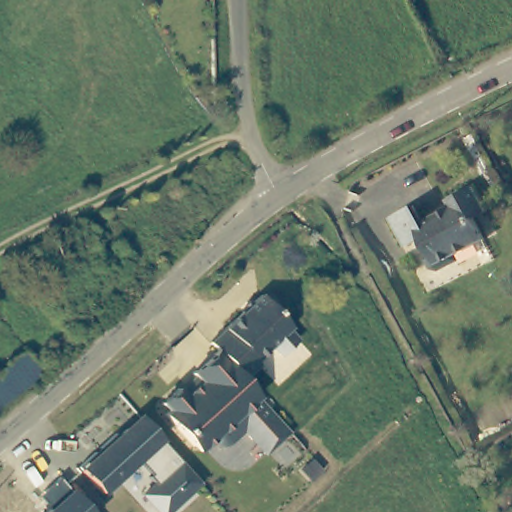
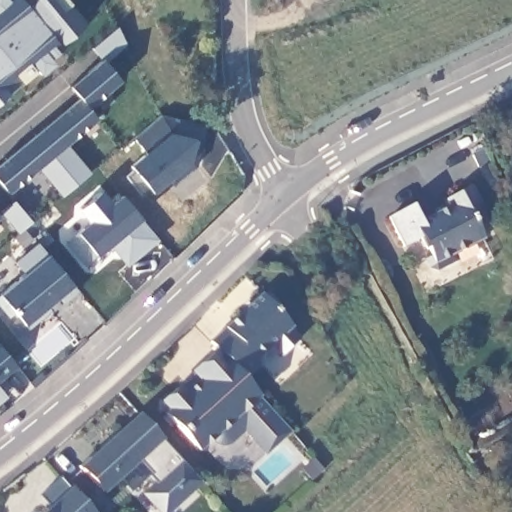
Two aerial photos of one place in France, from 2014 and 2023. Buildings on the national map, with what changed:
new [(20,81),(0,97),(0,0),(66,0),(84,22),(20,81)]
new [(0,183),(0,163),(79,97),(71,86),(100,59),(91,50),(117,26),(125,45),(105,62),(121,80),(88,108),(97,120),(67,144),(91,172),(61,197),(39,167),(7,193),(0,183)]
unchanged [(432,273),(427,263),(430,259),(421,240),(403,249),(388,219),(412,207),(421,223),(450,209),(446,202),(471,189),(485,215),(472,221),(485,245),(457,259),(459,265),(438,276),(432,273)]
new [(128,266),(109,245),(96,255),(84,264),(66,243),(77,232),(88,222),(77,210),(101,191),(110,203),(121,194),(142,220),(157,240),(128,266)]
new [(72,285),(24,324),(0,295),(0,291),(21,273),(13,262),(36,242),(47,254),(72,285)]
unchanged [(275,295),(282,295),(292,306),(291,313),(296,319),(304,329),(302,331),(311,341),(293,357),(284,346),(267,360),(271,365),(255,378),(254,377),(240,362),(229,348),(222,340),(275,295)]
new [(17,366),(0,379),(0,346),(17,366)]
unchanged [(300,431),(274,453),(261,437),(252,427),(240,438),(239,439),(236,440),(234,441),(232,441),(230,441),(227,440),(225,439),(224,438),(222,436),(214,444),(208,448),(204,443),(176,410),(179,407),(172,399),(189,386),(196,393),(212,379),(204,370),(229,348),(240,362),(254,377),(255,378),(286,415),(290,420),(300,431)]
demolished [(0,412),(0,370),(27,352),(47,379),(0,412)]
new [(5,396),(0,400),(0,389),(5,396)]
unchanged [(159,423),(206,481),(167,512),(149,490),(161,480),(155,473),(157,471),(143,455),(116,478),(106,486),(87,463),(97,455),(149,412),(159,423)]
unchanged [(41,497),(60,478),(72,491),(93,512),(45,512),(50,507),(41,497)]

